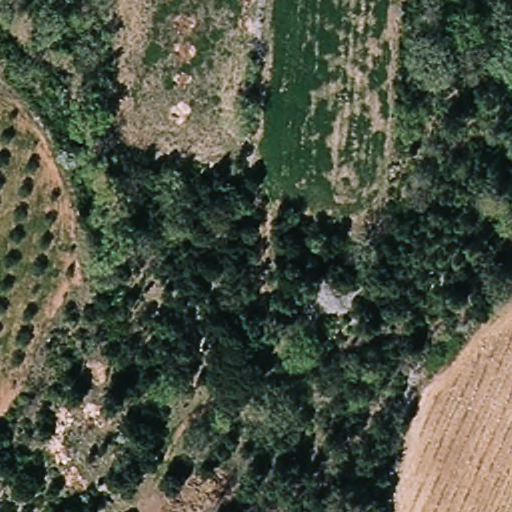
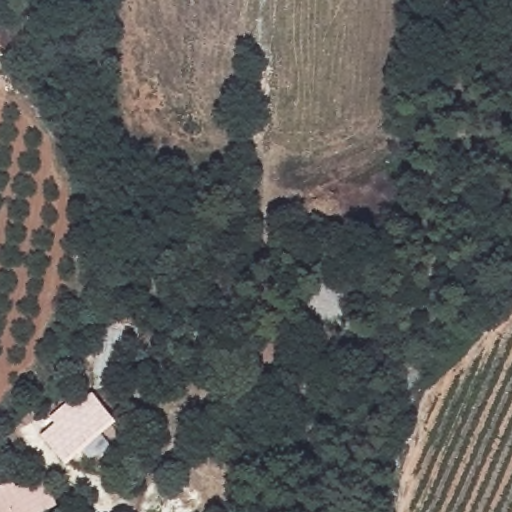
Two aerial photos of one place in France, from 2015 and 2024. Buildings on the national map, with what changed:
new [(94,393),(117,420),(65,464),(42,436),(94,393)]
new [(13,479),(17,487),(42,475),(60,507),(51,512),(0,512),(0,487),(13,479)]

